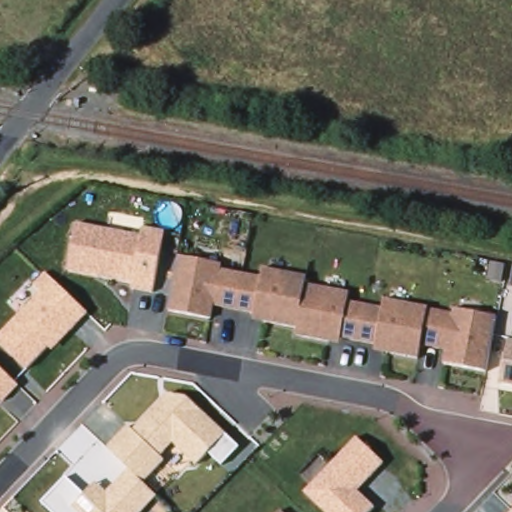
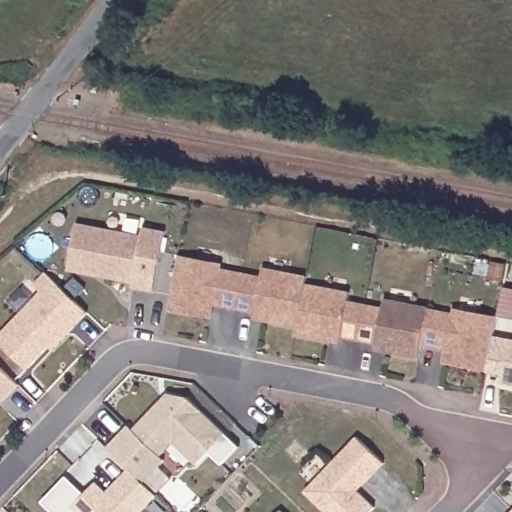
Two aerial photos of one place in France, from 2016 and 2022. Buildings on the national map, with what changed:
unchanged [(141,232),(142,226),(165,229),(155,288),(131,285),(132,280),(70,266),(76,223),(141,232)]
unchanged [(486,368),(442,362),(444,349),(422,345),(420,358),(371,348),(373,343),(342,338),(340,342),(292,334),(294,328),(252,320),(254,314),(214,305),(212,317),(166,308),(176,252),(221,262),(220,266),(260,273),(261,265),(308,273),(307,280),(351,288),(350,298),(382,303),(383,297),(427,303),(426,307),(450,311),(452,306),(496,313),(486,368)]
unchanged [(34,285),(47,272),(87,310),(52,349),(49,346),(28,368),(0,344),(0,331),(40,291),(34,285)]
unchanged [(500,382),(508,339),(512,339),(512,384),(500,382)]
unchanged [(19,385),(4,401),(0,397),(0,366),(11,377),(19,385)]
unchanged [(130,469),(106,447),(129,421),(132,425),(165,390),(189,394),(229,431),(199,462),(172,442),(161,454),(166,458),(144,482),(130,469)]
unchanged [(327,512),(305,491),(357,436),(385,462),(370,477),(358,490),(375,507),(370,512),(327,512)]
unchanged [(107,492),(130,469),(144,482),(157,496),(142,512),(79,512),(73,507),(87,492),(96,482),(107,492)]
unchanged [(284,512),(279,512),(281,510),(284,512)]
unchanged [(510,512),(512,510),(512,512),(510,512)]

